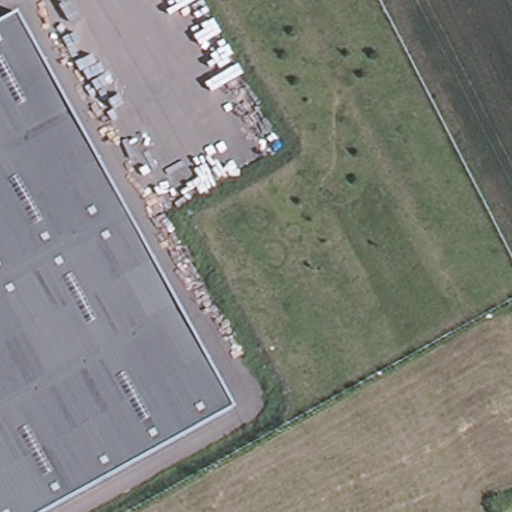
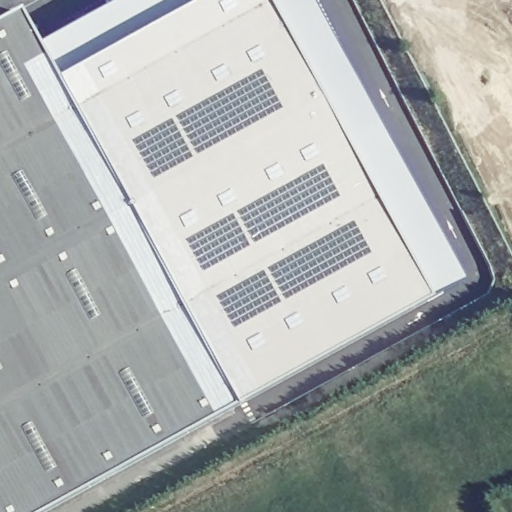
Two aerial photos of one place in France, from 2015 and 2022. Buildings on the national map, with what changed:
new [(198,0),(275,0),(435,295),(234,404),(60,77),(198,0)]
unchanged [(234,404),(38,512),(0,512),(0,18),(16,9),(234,404)]

